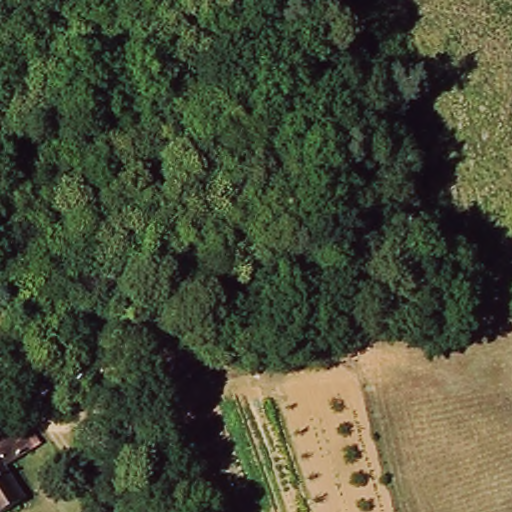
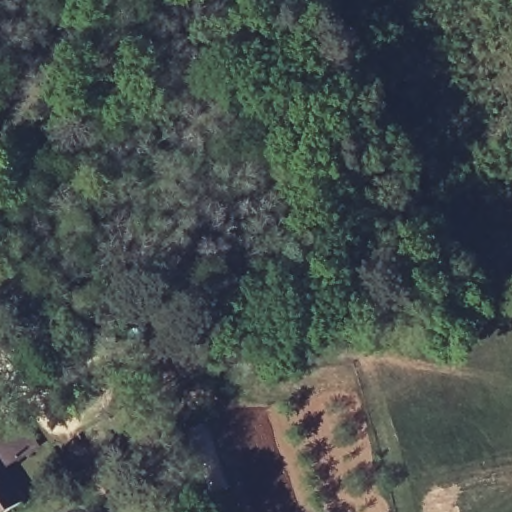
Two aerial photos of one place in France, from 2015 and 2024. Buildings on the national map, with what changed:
unchanged [(21,465),(1,475),(18,507),(8,512),(0,512),(0,443),(8,439),(21,465)]

